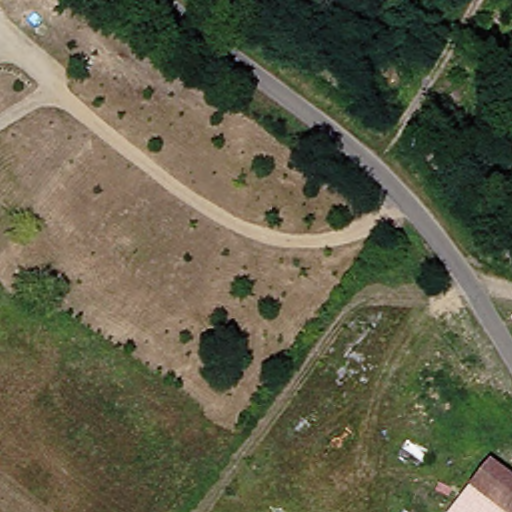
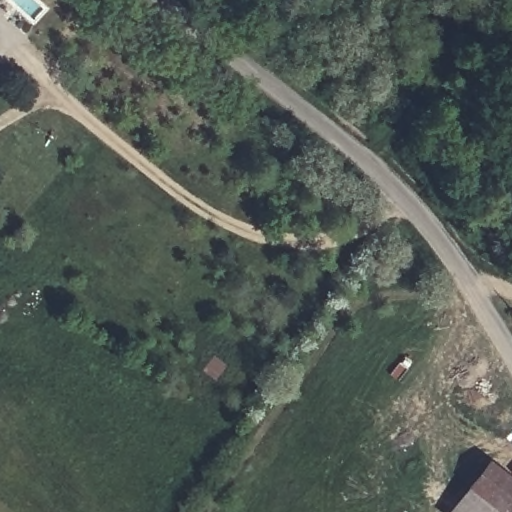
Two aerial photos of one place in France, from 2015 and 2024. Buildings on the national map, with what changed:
unchanged [(458,487),(475,464),(512,493),(512,512),(490,512),(458,487)]

